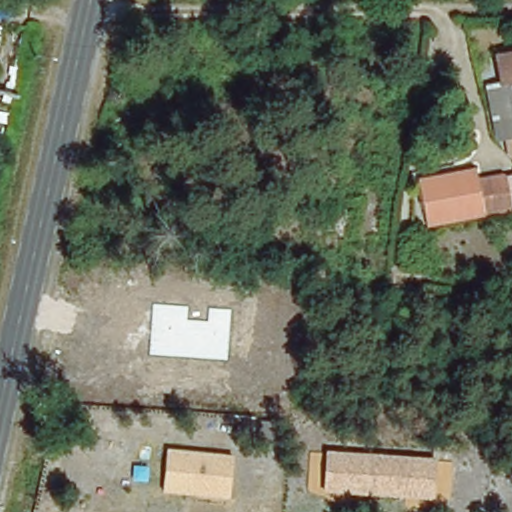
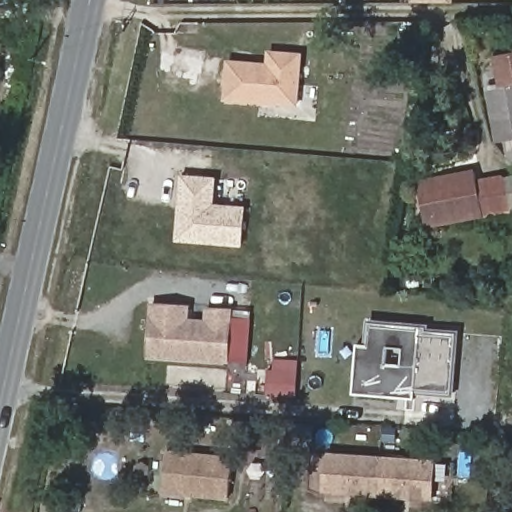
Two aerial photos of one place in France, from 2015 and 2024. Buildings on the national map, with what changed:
new [(411,2),(411,0),(453,0),(453,2),(411,2)]
new [(267,64),(267,52),(303,55),(299,109),(223,102),(227,61),(267,64)]
unchanged [(503,85),(499,54),(512,52),(512,137),(495,139),(489,87),(503,85)]
unchanged [(508,141),(512,140),(512,156),(510,156),(508,141)]
unchanged [(510,180),(512,193),(512,210),(427,224),(422,189),(421,181),(458,174),(481,171),(484,184),(510,180)]
new [(217,180),(215,207),(243,207),(241,245),(175,242),(180,177),(217,180)]
new [(189,305),(188,318),(203,320),(204,307),(232,308),(232,318),(251,320),(248,365),(229,363),(146,356),(149,303),(189,305)]
new [(429,325),(429,330),(459,332),(454,395),(417,392),(416,398),(354,392),(359,343),(367,343),(368,320),(429,325)]
new [(268,371),(298,373),(297,398),(267,397),(268,371)]
unchanged [(230,499),(163,494),(169,450),(233,456),(230,499)]
unchanged [(433,498),(326,493),(328,453),(434,460),(433,498)]

